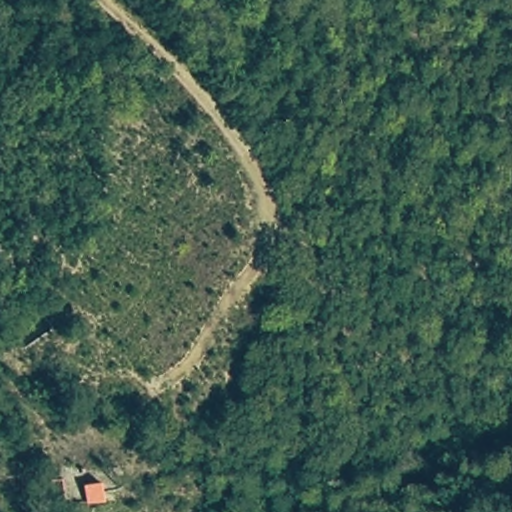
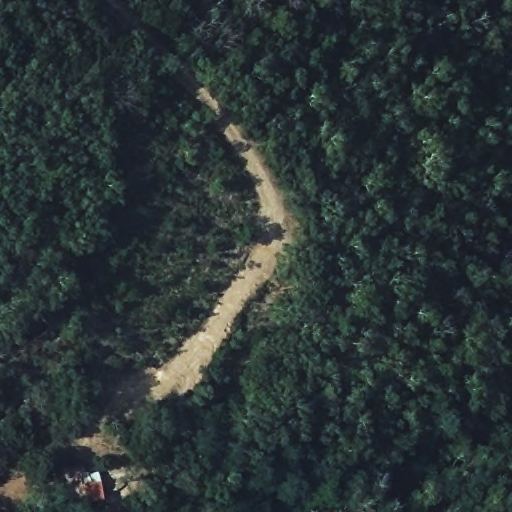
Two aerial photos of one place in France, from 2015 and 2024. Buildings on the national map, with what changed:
unchanged [(59,483),(75,482),(98,481),(96,504),(83,504),(60,505),(59,483)]

